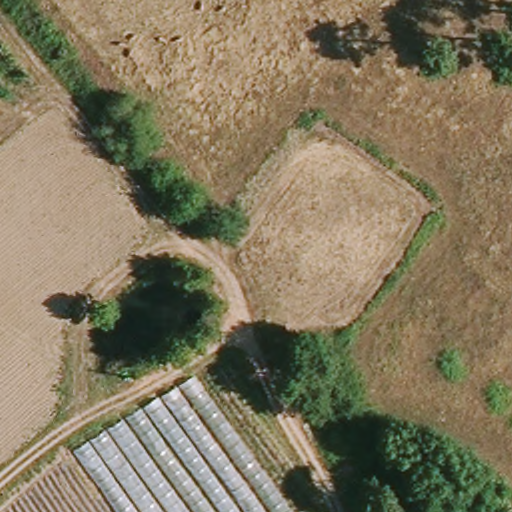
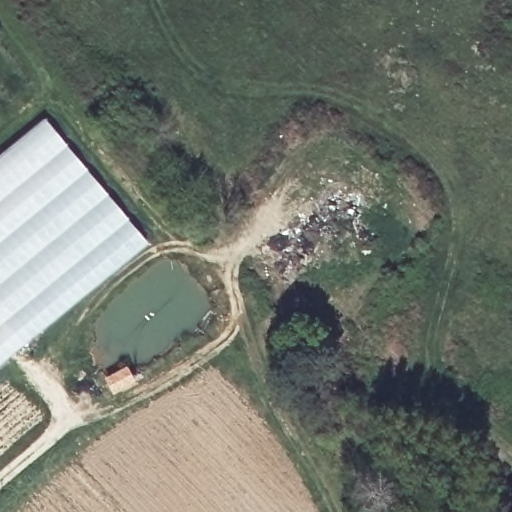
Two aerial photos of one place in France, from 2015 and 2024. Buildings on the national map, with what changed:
new [(44,117),(147,242),(31,335),(0,363),(0,152),(44,117)]
demolished [(103,431),(235,356),(299,512),(3,512),(51,469),(103,431)]
new [(129,367),(138,384),(115,396),(106,379),(129,367)]

